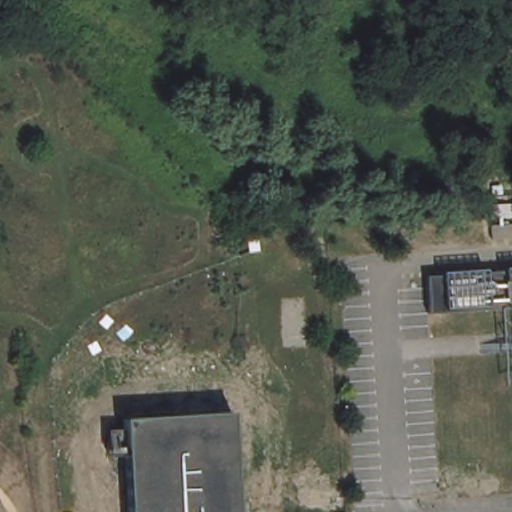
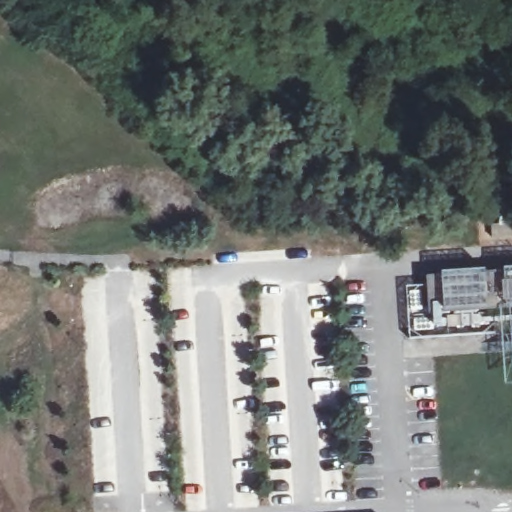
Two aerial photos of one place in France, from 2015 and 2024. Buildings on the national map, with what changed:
unchanged [(512,224),(512,237),(492,238),(492,225),(512,224)]
unchanged [(442,310),(440,269),(512,264),(512,387),(507,388),(499,307),(442,310)]
demolished [(127,464),(115,465),(113,429),(125,429),(124,413),(233,407),(240,512),(130,512),(127,464)]

